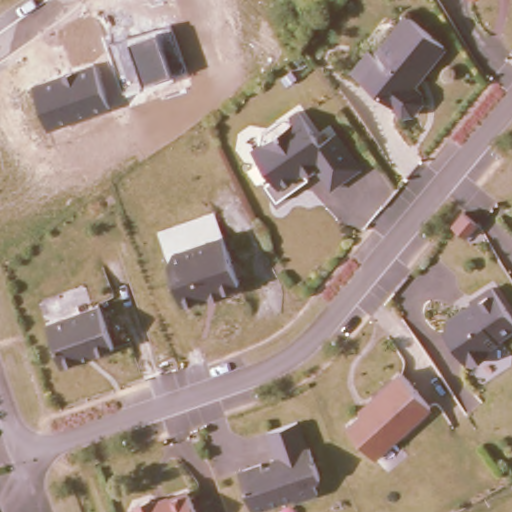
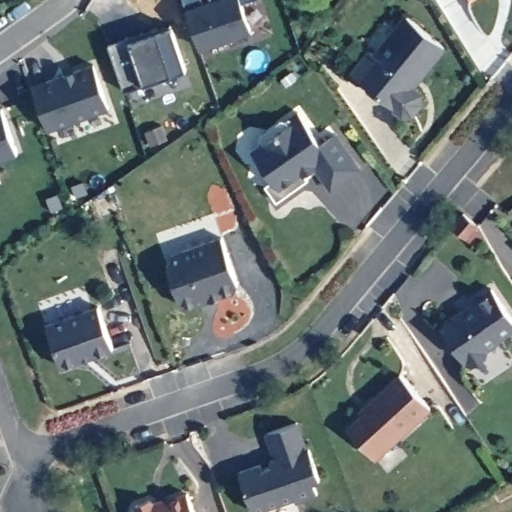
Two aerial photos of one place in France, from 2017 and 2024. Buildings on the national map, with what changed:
new [(250,28),(199,45),(183,0),(202,0),(204,3),(211,0),(244,0),(242,1),(250,28)]
unchanged [(451,47),(422,89),(428,96),(407,119),(355,76),(405,14),(451,47)]
unchanged [(171,24),(187,69),(172,73),(144,81),(124,90),(109,43),(171,24)]
unchanged [(95,63),(110,108),(49,129),(32,84),(95,63)]
new [(2,107),(18,151),(0,157),(0,108),(2,107)]
unchanged [(327,136),(337,129),(362,169),(330,190),(314,167),(279,189),(253,149),(303,112),(327,136)]
unchanged [(240,291),(180,309),(165,265),(172,252),(220,235),(240,291)]
unchanged [(512,330),(470,365),(444,327),(497,284),(512,307),(512,330)]
unchanged [(115,350),(60,367),(47,319),(102,304),(115,350)]
unchanged [(432,406),(380,461),(347,427),(404,372),(432,406)]
unchanged [(325,482),(320,483),(322,493),(258,512),(253,512),(242,469),(270,461),(265,439),(282,420),(310,425),(325,482)]
unchanged [(196,512),(134,512),(132,509),(187,489),(196,512)]

